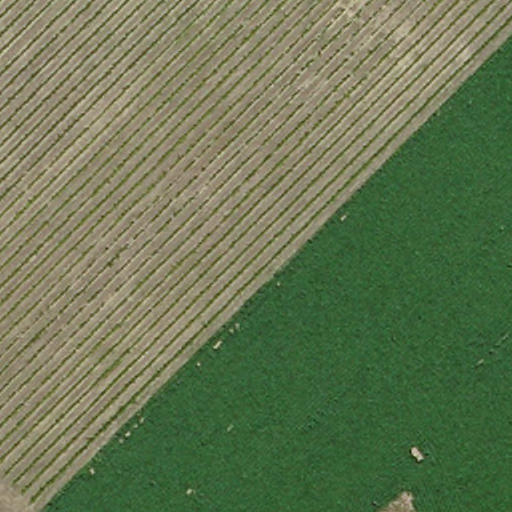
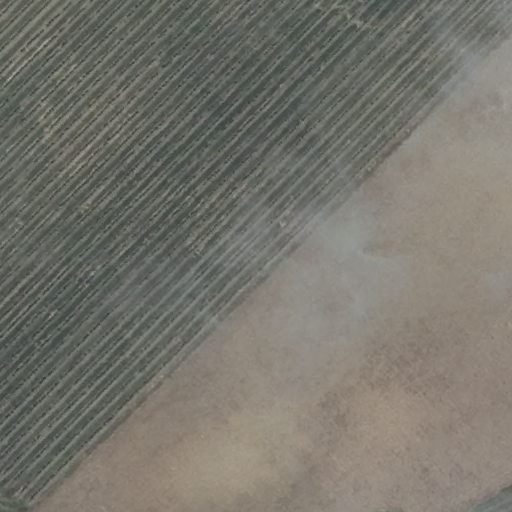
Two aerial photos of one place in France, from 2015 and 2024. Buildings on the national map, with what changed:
[]

